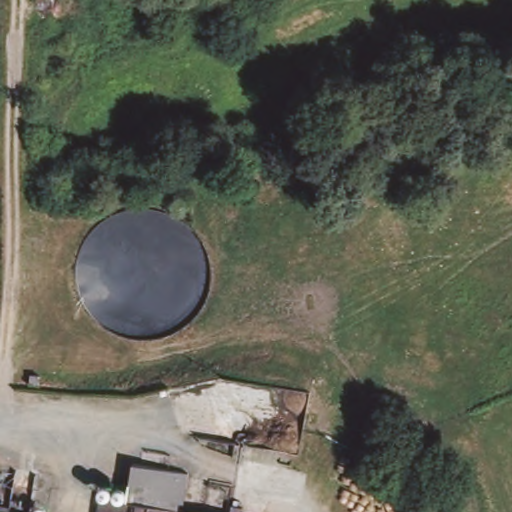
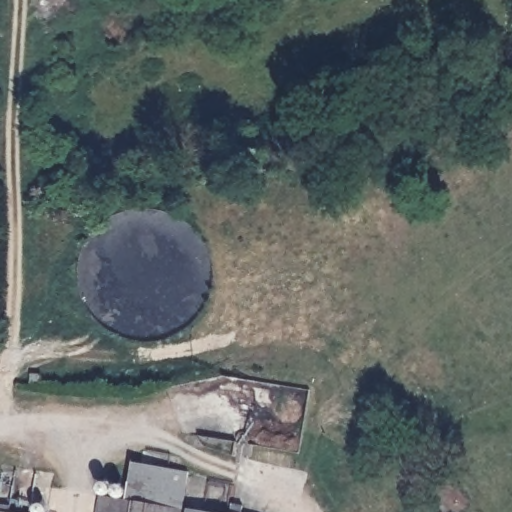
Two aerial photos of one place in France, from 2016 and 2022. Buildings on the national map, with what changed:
unchanged [(121,501),(127,464),(180,474),(173,512),(94,512),(97,496),(121,501)]

